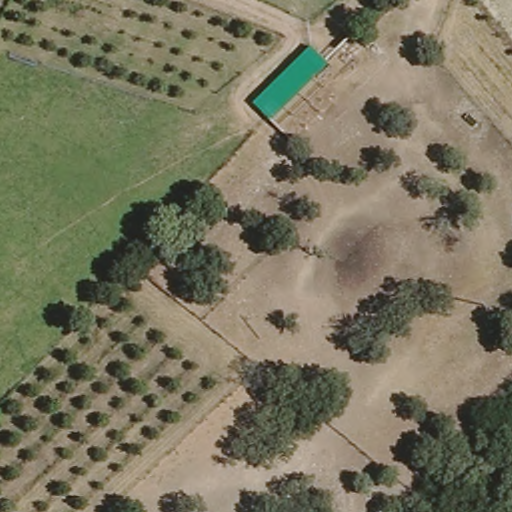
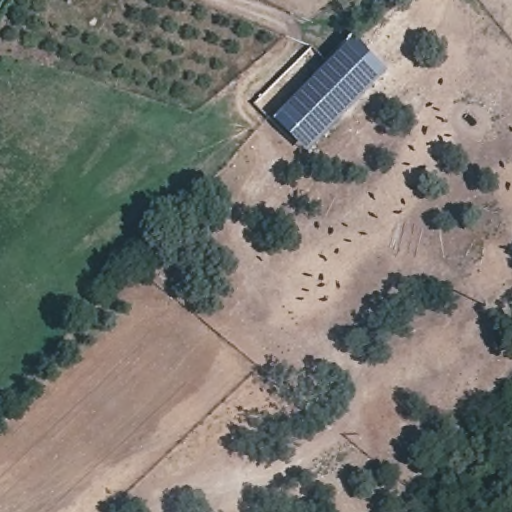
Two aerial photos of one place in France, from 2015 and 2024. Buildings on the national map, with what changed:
demolished [(350,36),(374,63),(289,145),(261,118),(350,36)]
new [(353,41),(386,74),(308,152),(275,119),(353,41)]
new [(253,104),(312,46),(329,65),(271,120),(253,104)]

